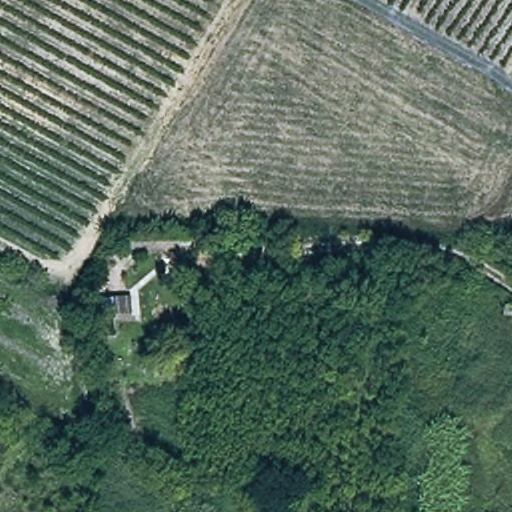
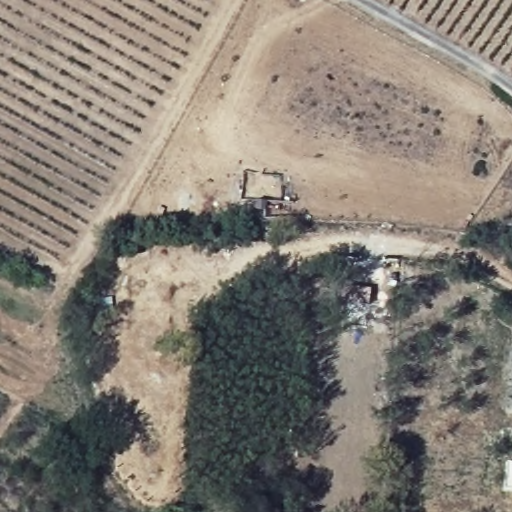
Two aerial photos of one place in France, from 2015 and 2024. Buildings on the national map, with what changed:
unchanged [(126,301),(127,319),(88,321),(86,304),(126,301)]

